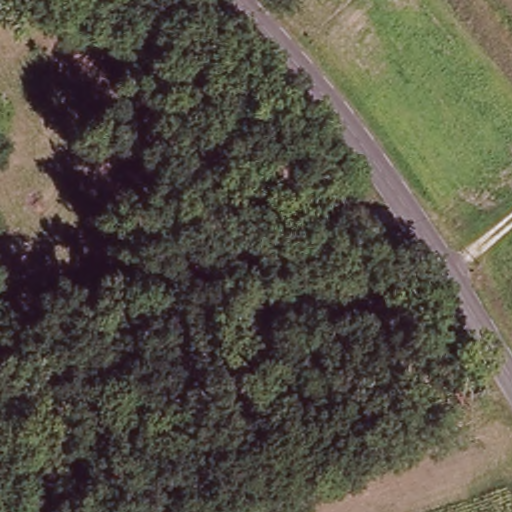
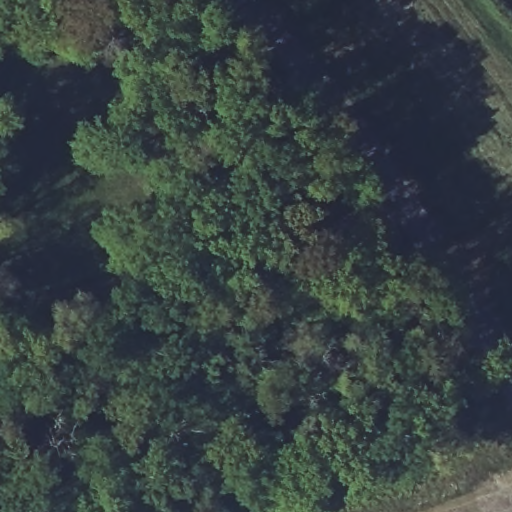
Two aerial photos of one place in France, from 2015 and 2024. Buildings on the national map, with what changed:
[]

